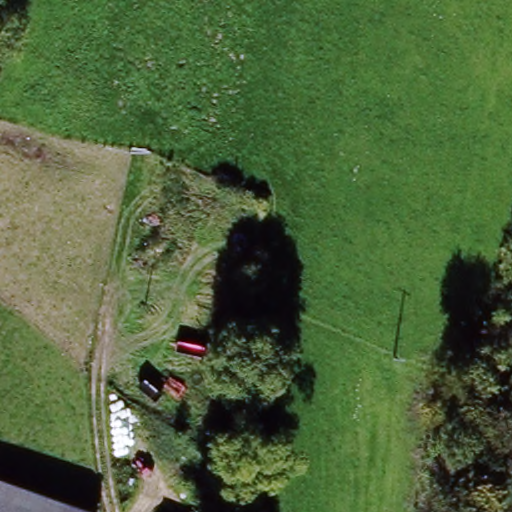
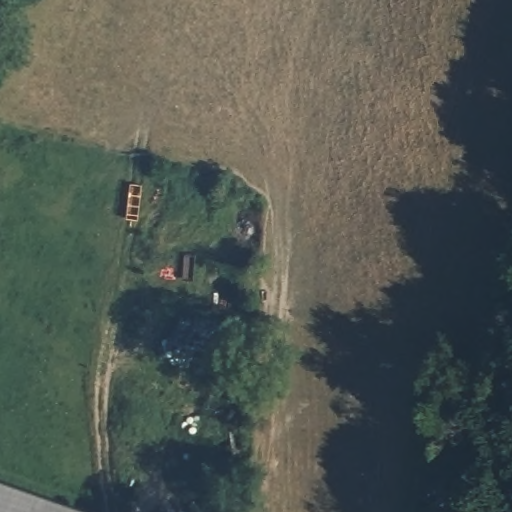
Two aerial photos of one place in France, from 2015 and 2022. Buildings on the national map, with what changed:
unchanged [(42,512),(0,512),(0,502),(42,512)]

